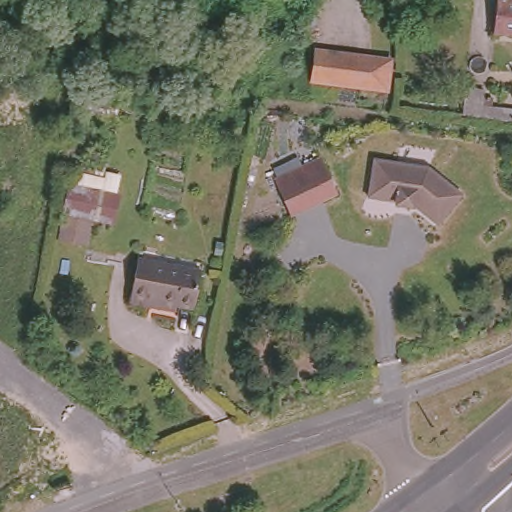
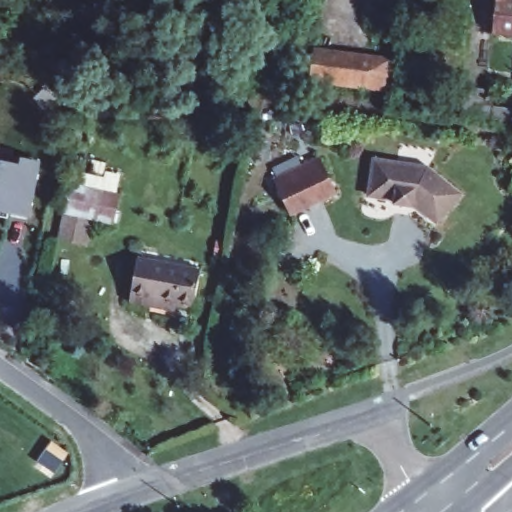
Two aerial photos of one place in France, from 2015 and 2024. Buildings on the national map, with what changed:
unchanged [(499,1),(512,2),(512,36),(495,34),(499,1)]
unchanged [(389,83),(314,74),(318,45),(392,54),(389,83)]
unchanged [(512,105),(512,116),(465,110),(469,81),(485,84),(483,100),(512,105)]
unchanged [(459,187),(438,215),(411,194),(410,199),(395,196),(395,192),(369,187),(374,153),(426,161),(459,187)]
unchanged [(335,185),(293,209),(276,176),(317,154),(335,185)]
new [(22,159),(41,162),(30,219),(0,213),(0,161),(20,165),(22,159)]
unchanged [(57,232),(62,207),(69,179),(121,190),(115,227),(90,222),(87,239),(57,232)]
unchanged [(152,300),(134,296),(142,250),(205,262),(197,301),(180,298),(178,305),(152,300)]

